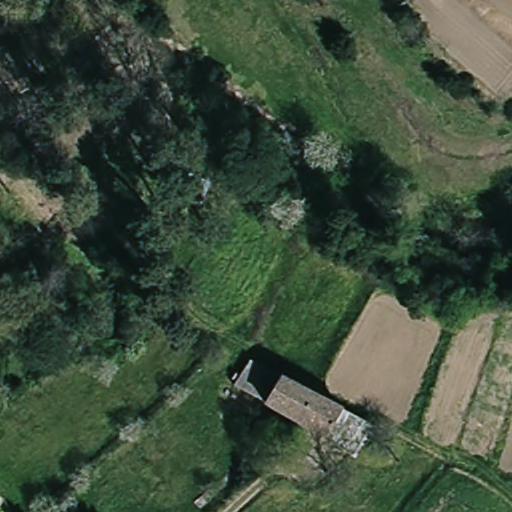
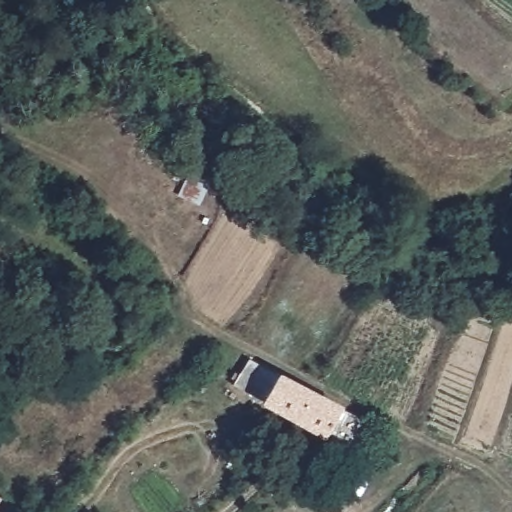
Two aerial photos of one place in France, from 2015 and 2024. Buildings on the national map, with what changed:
unchanged [(267,369),(348,410),(334,436),(237,388),(253,362),(267,369)]

